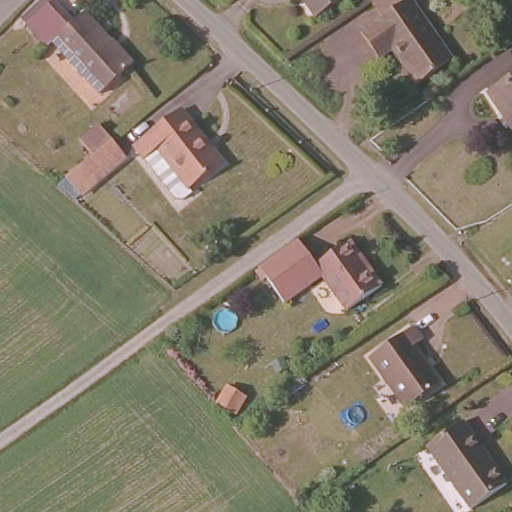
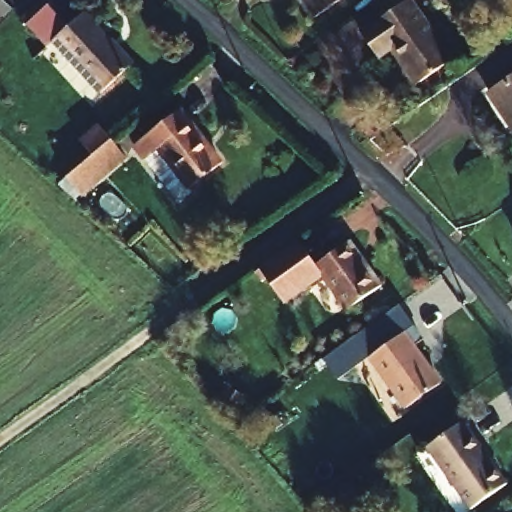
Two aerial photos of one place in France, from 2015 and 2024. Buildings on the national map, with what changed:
unchanged [(78,12),(129,61),(102,91),(51,42),(45,49),(22,29),(48,0),(50,0),(69,21),(78,12)]
unchanged [(303,0),(330,0),(311,12),(303,0)]
unchanged [(409,0),(456,66),(425,88),(412,66),(406,69),(398,56),(383,66),(366,40),(386,25),(376,10),(392,0),(409,0)]
unchanged [(512,83),(512,131),(490,99),(512,83)]
unchanged [(190,117),(195,114),(226,155),(200,175),(208,186),(200,194),(191,197),(180,197),(140,135),(182,105),(190,117)]
unchanged [(76,189),(66,177),(93,155),(79,138),(97,122),(111,139),(122,152),(76,189)]
unchanged [(347,307),(323,272),(285,300),(267,275),(263,279),(256,270),(260,266),(259,264),(298,236),(316,261),(348,239),(365,262),(369,260),(384,280),(382,282),(347,307)]
unchanged [(403,411),(367,360),(410,330),(420,345),(412,351),(436,387),(403,411)]
unchanged [(484,450),(479,455),(487,465),(493,463),(506,483),(469,510),(425,448),(464,421),(484,450)]

